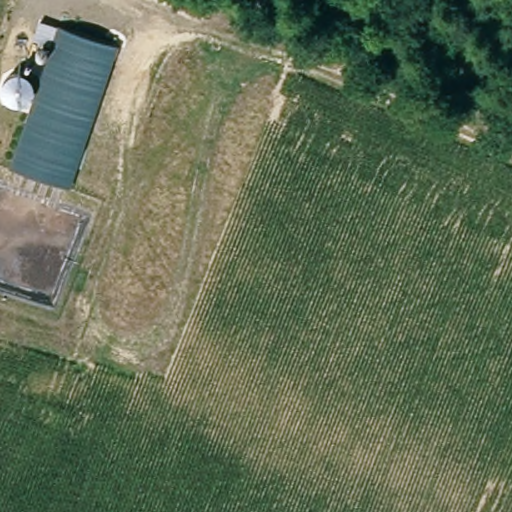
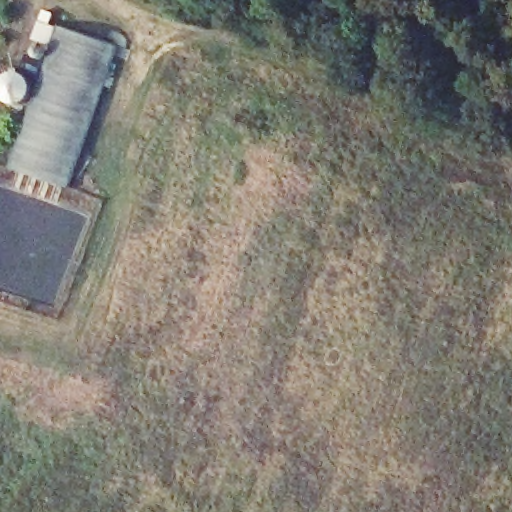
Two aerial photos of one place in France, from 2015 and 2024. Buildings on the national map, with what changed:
unchanged [(70,29),(72,23),(127,47),(72,187),(17,167),(62,46),(44,39),(51,22),(70,29)]

